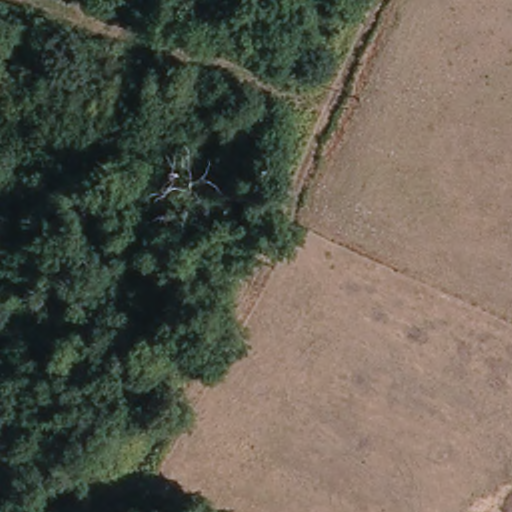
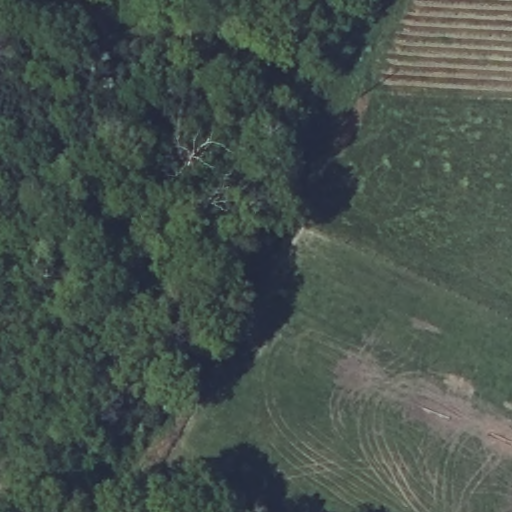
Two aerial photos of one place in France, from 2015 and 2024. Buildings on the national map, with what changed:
[]

